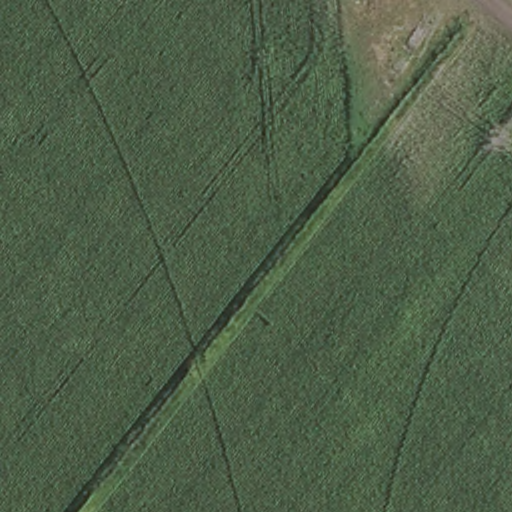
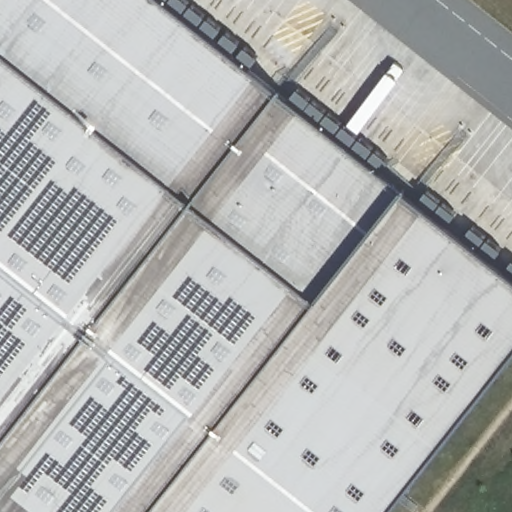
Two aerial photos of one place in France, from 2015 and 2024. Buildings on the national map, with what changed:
new [(277,95),(401,192),(512,279),(512,354),(387,512),(0,512),(0,0),(159,0),(277,95)]

